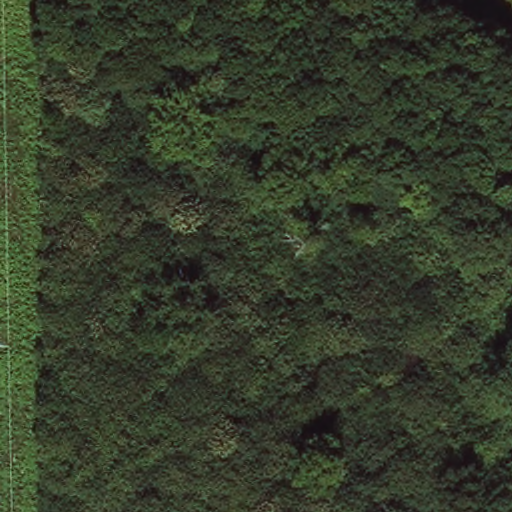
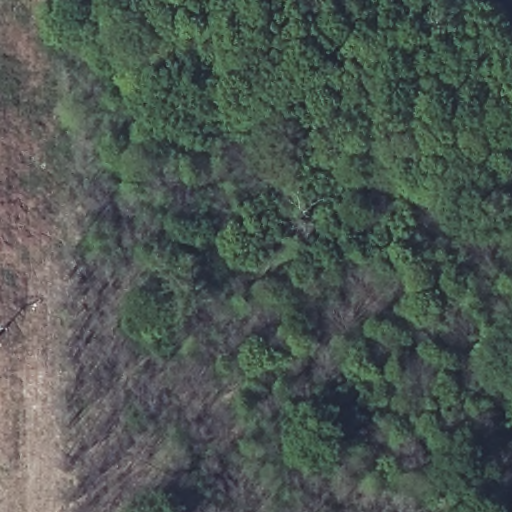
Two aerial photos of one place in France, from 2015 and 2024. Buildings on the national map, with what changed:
unchanged [(370,53),(352,56),(347,31),(365,29),(370,53)]

